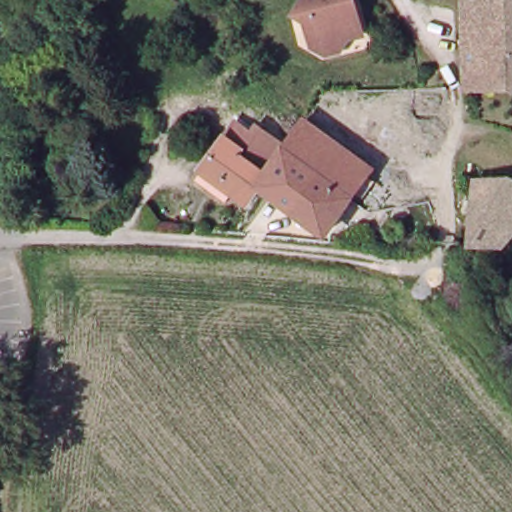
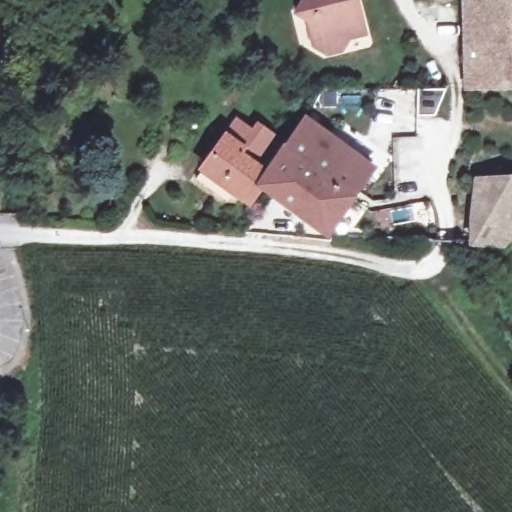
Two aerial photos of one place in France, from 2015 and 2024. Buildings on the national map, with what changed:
unchanged [(317,47),(311,21),(300,14),(307,0),(360,0),(368,33),(357,37),(345,50),(330,54),(317,47)]
unchanged [(472,87),(469,0),(499,0),(502,86),(472,87)]
unchanged [(499,0),(512,0),(512,86),(502,86),(499,0)]
unchanged [(298,142),(315,120),(349,146),(355,137),(387,161),(383,167),(361,197),(329,174),(317,189),(282,164),(298,142)]
unchanged [(205,179),(212,169),(236,138),(252,150),(256,144),(277,160),(270,169),(277,173),(268,185),(270,187),(258,203),(243,192),(236,202),(205,179)]
unchanged [(317,189),(329,174),(361,197),(335,234),(277,192),(270,187),(268,185),(277,173),(282,164),(317,189)]
unchanged [(495,240),(470,239),(485,218),(470,212),(475,175),(509,172),(512,174),(512,232),(505,240),(495,240)]

